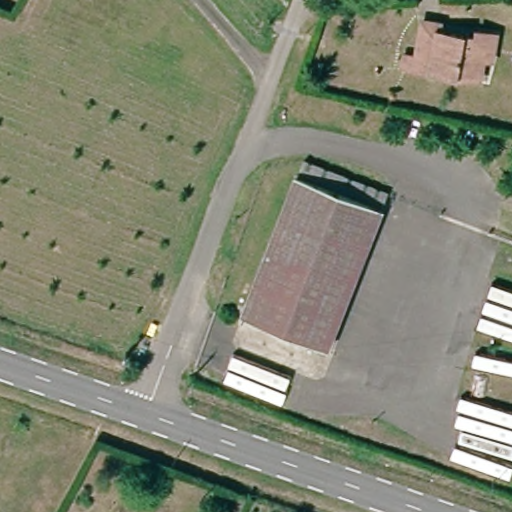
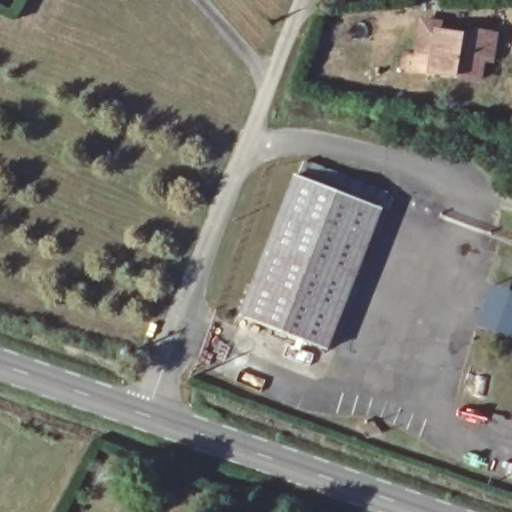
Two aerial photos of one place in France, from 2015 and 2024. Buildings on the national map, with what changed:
unchanged [(403,51),(416,52),(420,20),(437,22),(437,31),(478,36),(479,29),(495,31),(491,58),(481,57),(478,77),(401,68),(403,51)]
unchanged [(390,197),(335,340),(247,306),(302,163),(390,197)]
new [(490,282),(512,291),(512,339),(475,325),(490,282)]

